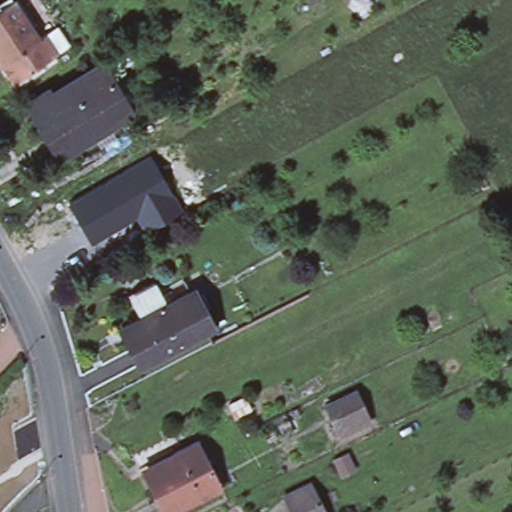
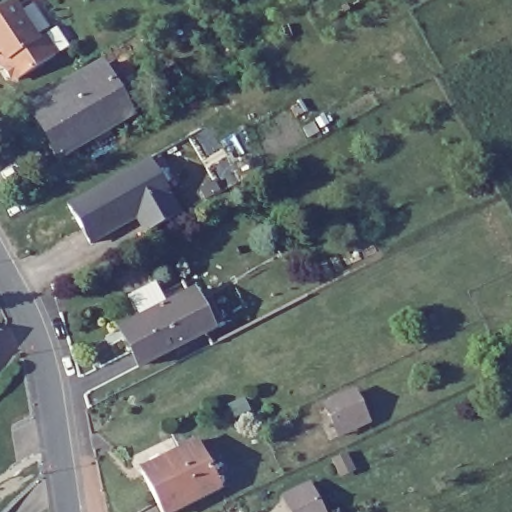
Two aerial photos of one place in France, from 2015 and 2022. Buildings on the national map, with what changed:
unchanged [(14,4),(40,42),(46,39),(59,59),(20,83),(8,80),(6,75),(0,67),(0,13),(14,4)]
unchanged [(46,88),(48,91),(99,62),(128,109),(56,151),(26,100),(46,88)]
unchanged [(67,202),(152,157),(183,211),(148,234),(138,217),(90,243),(67,202)]
unchanged [(215,329),(144,365),(126,331),(146,320),(134,296),(159,284),(171,307),(197,294),(215,329)]
unchanged [(338,435),(335,428),(323,403),(350,390),(363,415),(366,420),(338,435)]
unchanged [(164,454),(195,438),(219,485),(165,512),(161,512),(140,470),(166,457),(164,454)]
unchanged [(345,446),(351,461),(337,467),(330,453),(345,446)]
unchanged [(310,489),(322,512),(290,512),(285,501),(310,489)]

